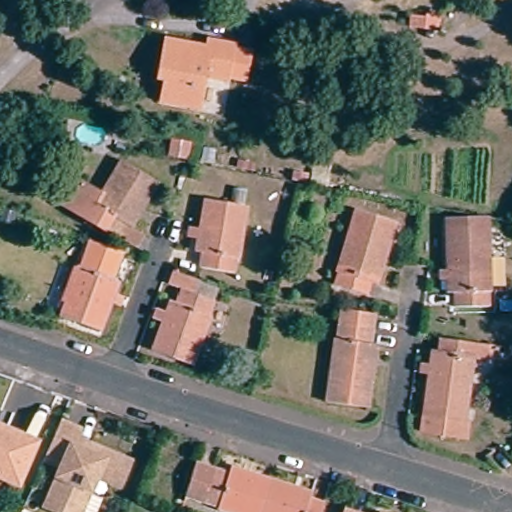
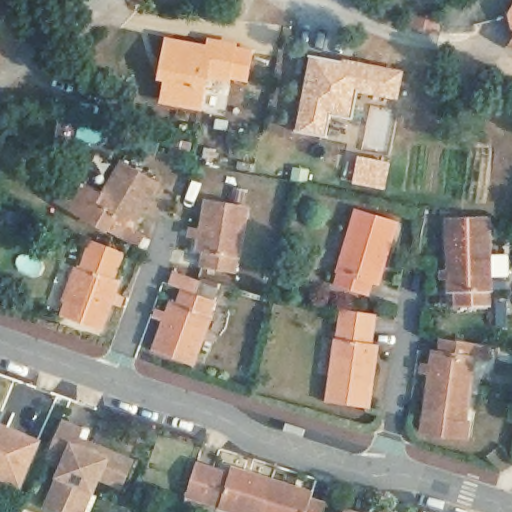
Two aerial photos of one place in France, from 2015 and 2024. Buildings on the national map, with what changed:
new [(510,14),(512,11),(512,19),(510,14)]
unchanged [(205,75),(198,108),(162,101),(166,80),(160,79),(163,64),(168,41),(209,49),(210,42),(233,47),(233,49),(251,53),(246,80),(227,77),(227,79),(205,75)]
new [(404,72),(398,100),(357,93),(353,118),(330,114),(325,136),(295,130),(310,56),(404,72)]
unchanged [(188,159),(169,155),(172,140),(191,144),(188,159)]
unchanged [(200,160),(203,145),(219,148),(215,163),(200,160)]
new [(352,184),(358,153),(392,162),(387,192),(352,184)]
unchanged [(129,240),(115,233),(52,198),(63,178),(95,196),(117,156),(154,177),(128,223),(136,227),(129,240)]
unchanged [(241,250),(239,271),(204,268),(206,249),(200,247),(205,197),(249,201),(246,251),(241,250)]
unchanged [(370,281),(366,294),(339,284),(342,272),(338,270),(356,211),(396,222),(376,283),(370,281)]
unchanged [(438,267),(446,266),(444,225),(443,216),(487,213),(487,222),(489,248),(491,284),(486,284),(487,299),(462,299),(454,300),(454,286),(447,287),(447,276),(439,276),(438,267)]
unchanged [(118,309),(110,306),(100,335),(59,320),(65,305),(76,273),(78,270),(80,271),(85,257),(117,268),(112,282),(118,285),(114,297),(122,300),(118,309)]
unchanged [(208,316),(188,365),(148,349),(168,300),(175,302),(180,288),(170,284),(174,273),(196,281),(195,282),(215,290),(211,301),(206,315),(208,316)]
unchanged [(368,343),(373,343),(367,406),(326,402),(332,339),(336,339),(338,321),(339,312),(371,315),(369,329),(368,343)]
unchanged [(469,442),(424,438),(425,422),(424,421),(427,386),(419,385),(420,374),(428,375),(430,361),(435,361),(437,351),(438,345),(440,346),(484,352),(483,363),(473,362),(467,425),(471,426),(469,442)]
unchanged [(57,465),(40,458),(56,421),(74,429),(70,439),(84,444),(124,462),(114,485),(92,476),(86,490),(77,512),(61,512),(41,504),(57,465)]
unchanged [(13,487),(0,481),(0,434),(30,447),(13,487)]
unchanged [(176,493),(185,467),(217,479),(220,473),(259,484),(250,512),(208,512),(209,505),(176,493)]
unchanged [(300,495),(299,500),(314,505),(312,512),(250,512),(259,484),(300,495)]

